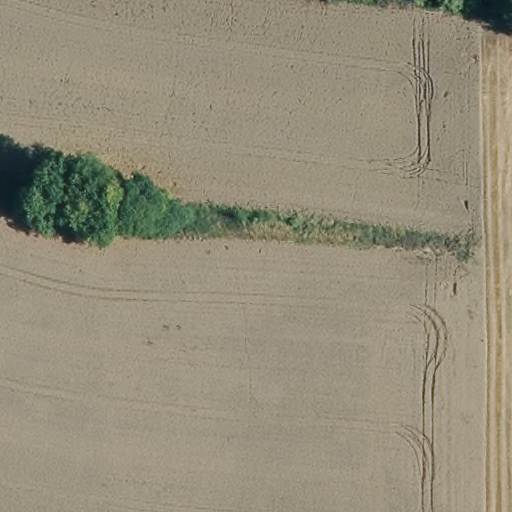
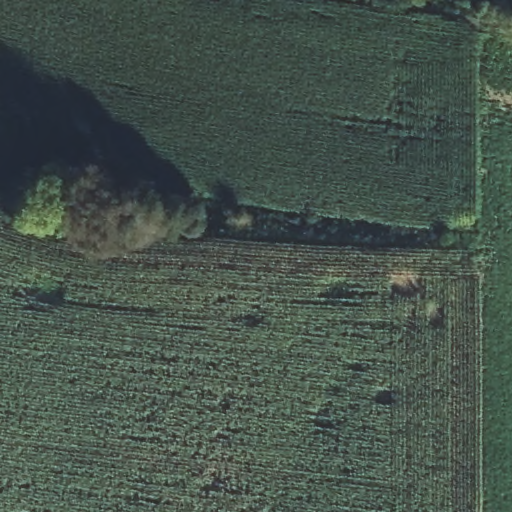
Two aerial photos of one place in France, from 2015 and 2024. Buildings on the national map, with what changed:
[]

